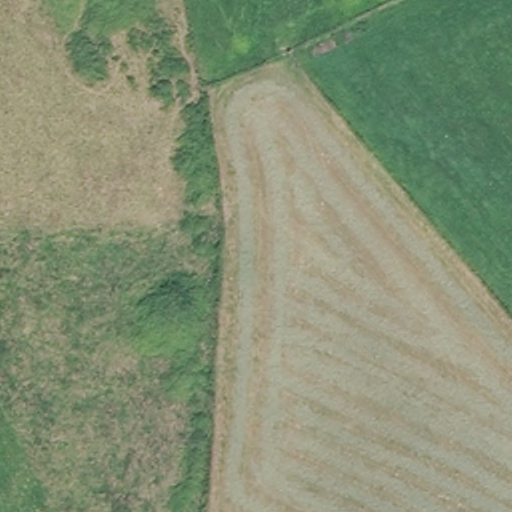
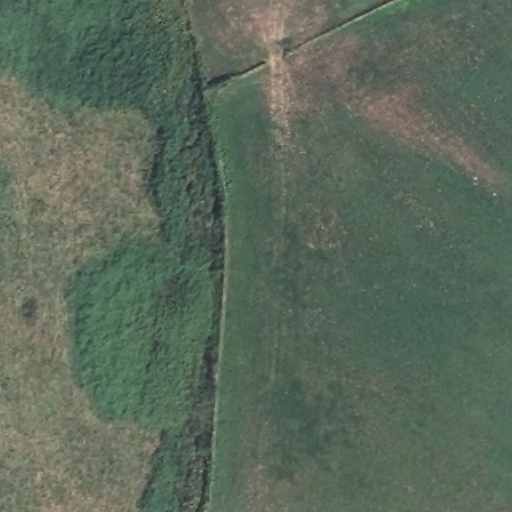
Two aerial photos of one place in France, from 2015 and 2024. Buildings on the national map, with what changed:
[]

